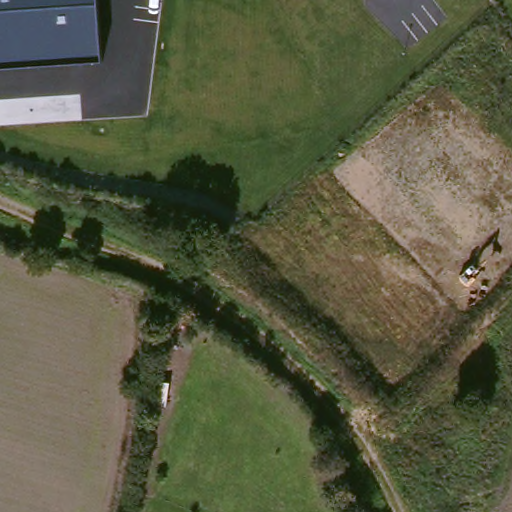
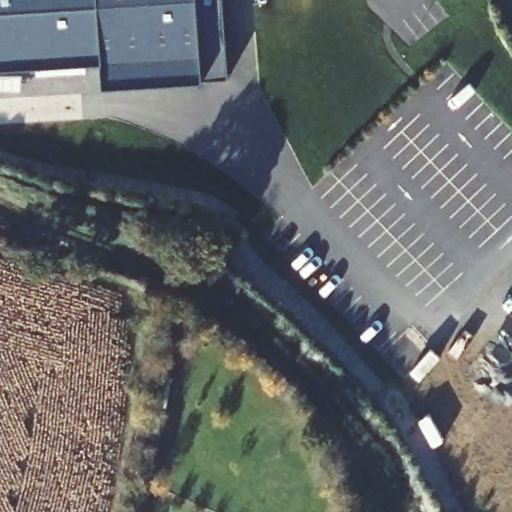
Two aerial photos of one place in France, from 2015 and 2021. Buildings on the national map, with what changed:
unchanged [(98,0),(102,60),(0,68),(0,0),(98,0)]
new [(203,73),(203,78),(103,85),(102,60),(98,0),(223,0),(228,74),(203,73)]

